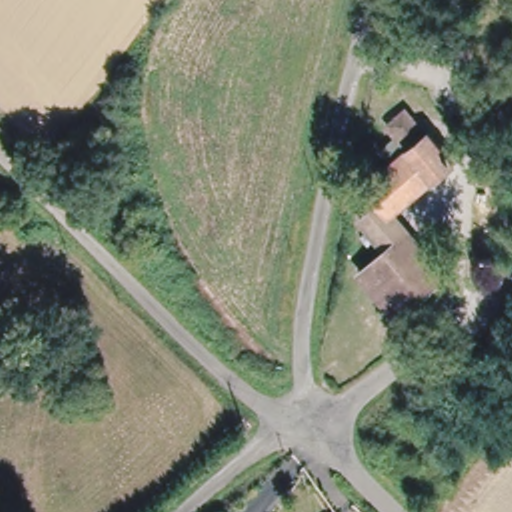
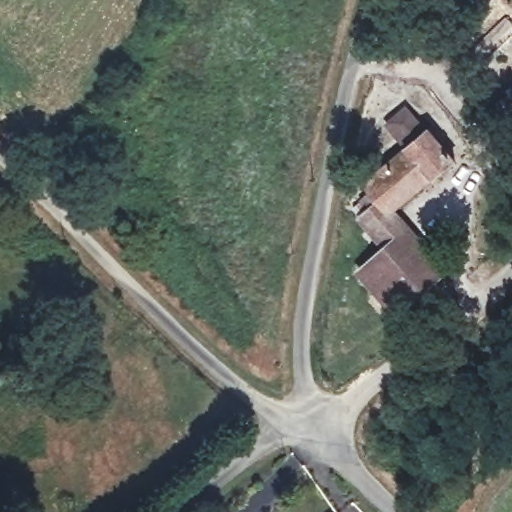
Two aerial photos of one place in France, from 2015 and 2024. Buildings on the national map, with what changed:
unchanged [(411,104),(439,138),(399,166),(383,145),(397,136),(387,123),(411,104)]
unchanged [(369,187),(399,166),(439,138),(461,168),(393,216),(372,193),(369,187)]
unchanged [(419,254),(401,271),(381,245),(362,219),(371,211),(363,199),(372,193),(393,216),(419,254)]
unchanged [(401,271),(419,254),(435,271),(384,307),(353,267),(381,245),(401,271)]

